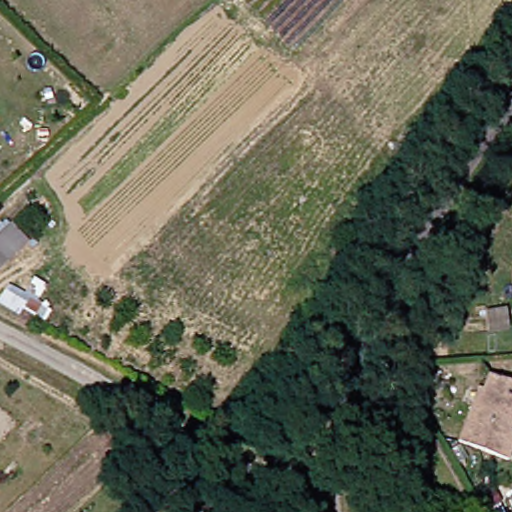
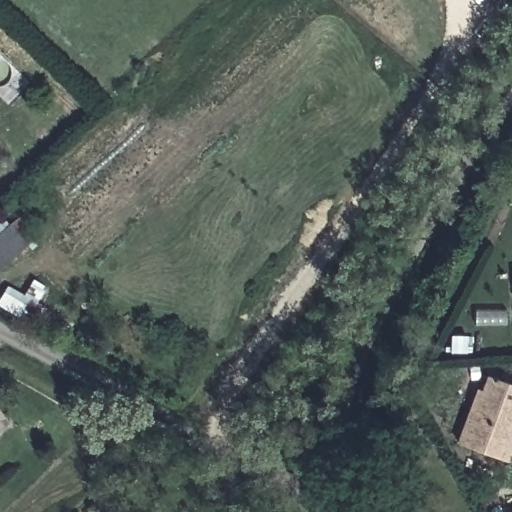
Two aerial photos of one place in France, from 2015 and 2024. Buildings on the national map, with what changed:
unchanged [(17,243),(0,257),(0,227),(2,225),(17,243)]
unchanged [(506,295),(505,273),(512,273),(512,295),(506,295)]
unchanged [(33,277),(49,283),(41,302),(49,306),(39,328),(0,308),(0,294),(5,283),(23,294),(33,277)]
unchanged [(509,434),(502,453),(453,435),(472,384),(482,388),(488,370),(512,379),(512,399),(502,395),(494,417),(512,424),(512,425),(509,434)]

